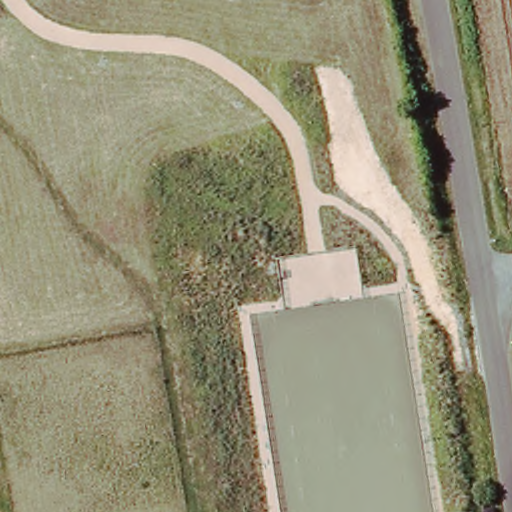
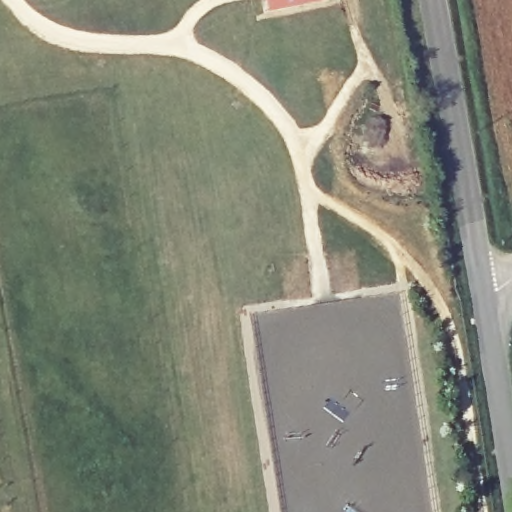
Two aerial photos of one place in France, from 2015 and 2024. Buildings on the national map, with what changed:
new [(325,0),(265,13),(262,0),(325,0)]

